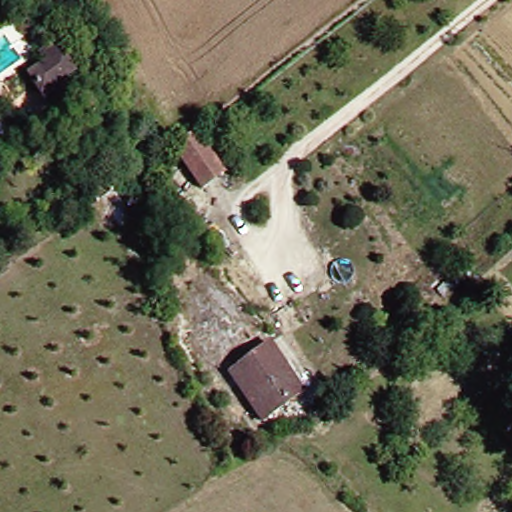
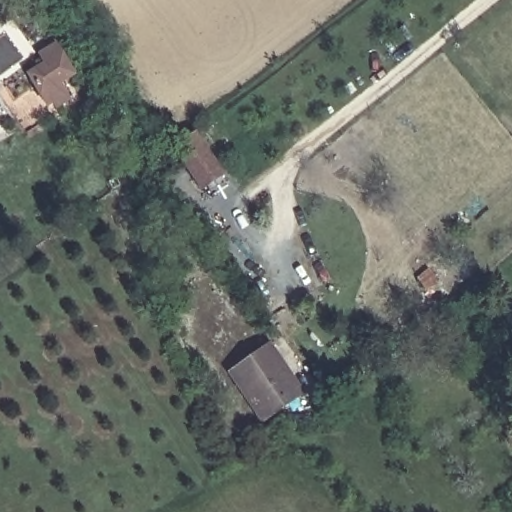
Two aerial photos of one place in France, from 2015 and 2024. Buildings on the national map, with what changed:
unchanged [(55,84),(65,100),(52,108),(50,102),(44,105),(25,74),(41,64),(35,55),(51,45),(70,75),(55,84)]
unchanged [(219,174),(198,189),(170,148),(190,134),(219,174)]
unchanged [(265,344),(299,394),(258,421),(225,372),(265,344)]

